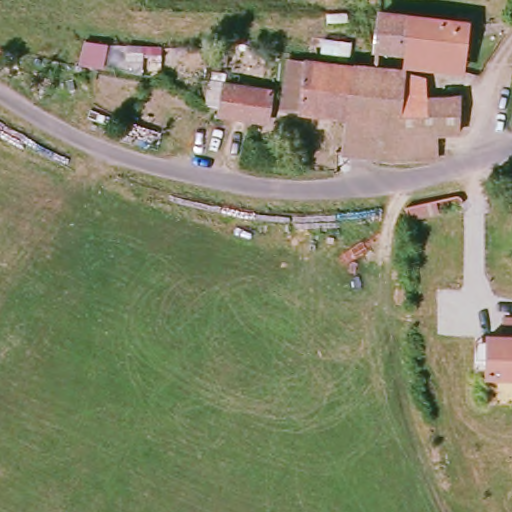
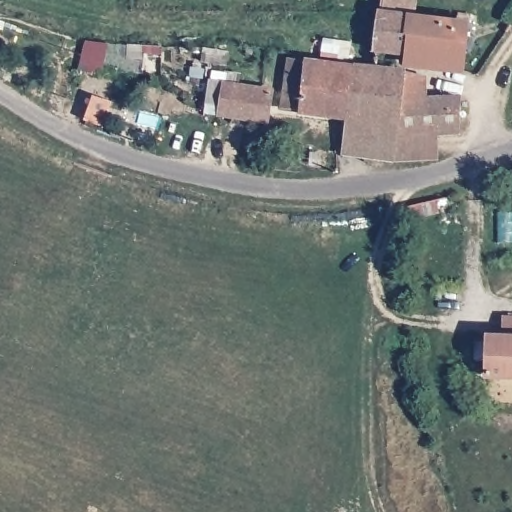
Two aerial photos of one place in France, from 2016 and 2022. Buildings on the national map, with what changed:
unchanged [(372,13),(450,25),(454,24),(454,17),(466,19),(462,63),(399,55),(370,51),(372,13)]
unchanged [(277,110),(283,54),(303,57),(296,112),(277,110)]
unchanged [(303,57),(303,56),(381,64),(381,72),(375,122),(342,118),(296,112),(303,57)]
unchanged [(398,75),(428,79),(426,101),(462,106),(460,133),(438,133),(435,160),(371,158),(375,122),(381,72),(398,75)]
unchanged [(218,90),(260,95),(263,100),(260,124),(214,120),(218,90)]
unchanged [(339,158),(342,118),(375,122),(371,158),(339,158)]
unchanged [(487,336),(501,336),(501,318),(512,318),(512,376),(486,375),(487,361),(474,361),(474,346),(487,346),(487,336)]

